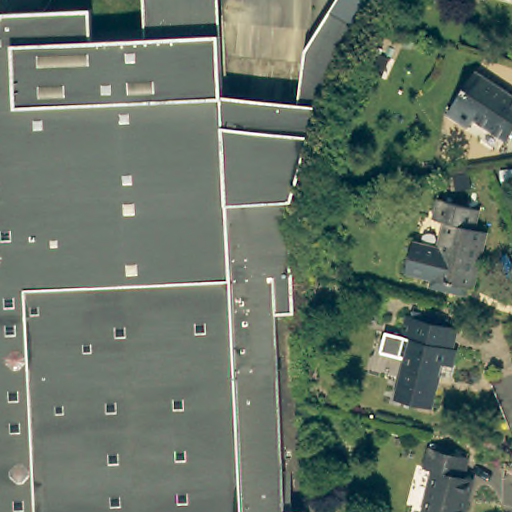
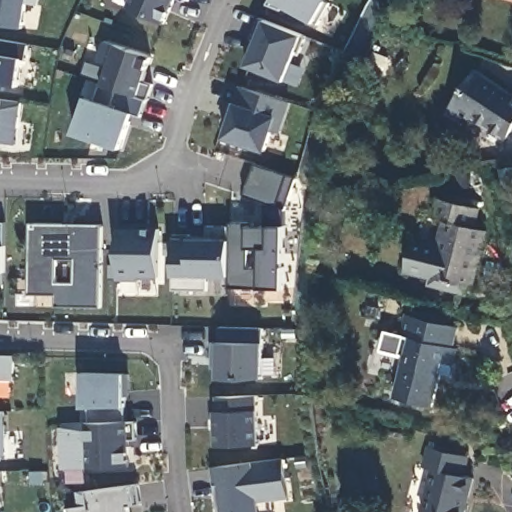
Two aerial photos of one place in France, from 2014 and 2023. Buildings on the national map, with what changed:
new [(38,5),(27,4),(23,28),(0,24),(0,0),(39,0),(38,5)]
new [(165,24),(128,8),(132,0),(175,0),(165,24)]
new [(185,2),(180,0),(186,0),(185,2)]
new [(326,1),(330,4),(318,25),(284,6),(282,11),(267,5),(270,0),(327,0),(326,1)]
demolished [(2,27),(13,26),(12,15),(81,11),(83,44),(97,42),(149,40),(178,39),(193,124),(195,161),(200,215),(192,217),(179,220),(175,221),(91,250),(61,261),(0,282),(0,31),(2,27)]
new [(255,42),(251,40),(260,19),(265,20),(303,35),(284,82),(247,67),(255,42)]
new [(29,44),(26,60),(23,60),(18,86),(0,83),(0,39),(29,44)]
new [(100,84),(95,83),(101,66),(96,64),(103,42),(150,57),(138,96),(100,84)]
unchanged [(467,125),(448,113),(474,71),(512,94),(512,131),(511,131),(506,139),(491,130),(488,135),(469,124),(467,125)]
new [(121,149),(75,133),(86,98),(94,100),(100,84),(138,96),(147,100),(141,117),(133,115),(130,122),(121,149)]
new [(280,135),(272,131),(265,153),(224,139),(235,103),(240,86),(290,104),(280,135)]
new [(3,100),(22,104),(16,145),(0,142),(0,99),(3,100)]
demolished [(200,215),(195,161),(230,158),(232,191),(273,190),(278,135),(313,139),(297,200),(200,215)]
new [(287,176),(294,180),(284,210),(284,228),(283,290),(261,289),(231,288),(231,277),(229,277),(208,277),(207,291),(174,290),(173,276),(173,239),(190,239),(209,239),(207,226),(232,226),(231,224),(266,225),(266,205),(244,197),(255,165),(287,176)]
unchanged [(512,183),(501,184),(499,170),(512,168),(512,183)]
unchanged [(469,186),(455,189),(452,175),(466,172),(469,186)]
unchanged [(459,292),(429,285),(431,277),(405,270),(412,241),(436,247),(443,220),(432,217),(437,198),(478,209),(473,229),(485,231),(471,287),(466,286),(464,294),(459,292)]
demolished [(295,317),(279,318),(289,512),(0,512),(0,282),(61,261),(91,250),(175,221),(179,220),(192,217),(200,215),(297,200),(292,216),(295,317)]
new [(0,282),(0,223),(5,224),(5,246),(4,271),(3,282),(0,282)]
new [(102,225),(101,307),(56,307),(56,295),(30,295),(31,225),(102,225)]
new [(158,278),(139,278),(139,281),(117,281),(117,228),(159,229),(158,278)]
unchanged [(444,378),(435,412),(398,402),(410,357),(400,354),(404,338),(409,320),(461,333),(456,352),(461,353),(456,370),(453,380),(444,378)]
new [(262,343),(262,378),(217,380),(218,342),(219,327),(262,329),(262,343)]
new [(13,381),(0,380),(0,356),(14,356),(13,381)]
new [(60,427),(62,427),(61,423),(86,423),(91,423),(91,407),(83,407),(82,372),(124,374),(125,406),(128,422),(131,467),(63,468),(60,427)]
new [(258,445),(215,446),(213,412),(216,411),(216,398),(256,396),(258,445)]
unchanged [(423,465),(428,446),(467,456),(462,475),(472,477),(463,512),(421,512),(433,468),(423,465)]
new [(288,499),(257,503),(259,512),(218,512),(211,469),(282,460),(288,499)]
new [(80,506),(77,492),(89,491),(132,485),(138,485),(140,504),(135,505),(130,506),(131,512),(70,512),(69,508),(80,506)]

